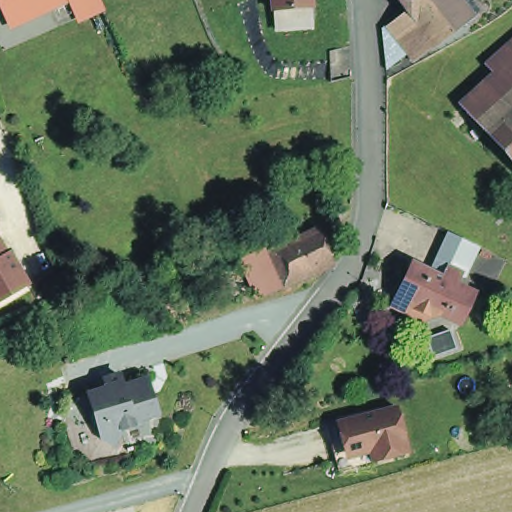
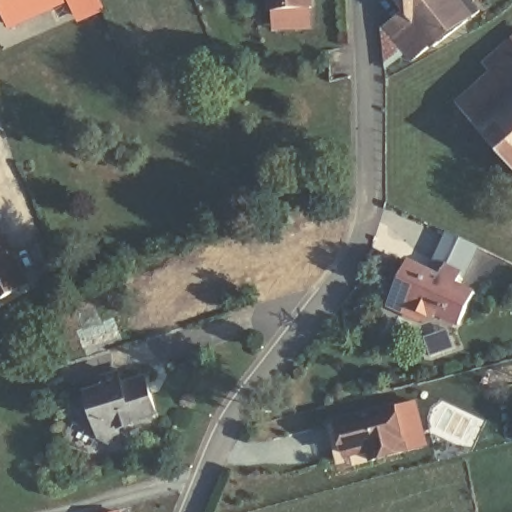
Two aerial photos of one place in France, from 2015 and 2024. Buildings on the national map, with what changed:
unchanged [(12,24),(0,0),(63,0),(12,24)]
unchanged [(102,7),(80,17),(72,0),(98,0),(102,7)]
unchanged [(269,9),(269,0),(313,0),(313,6),(269,9)]
unchanged [(382,74),(380,35),(387,29),(390,31),(409,16),(395,0),(469,0),(478,10),(467,21),(435,50),(402,64),(390,67),(382,74)]
unchanged [(463,110),(502,74),(495,66),(512,51),(512,163),(463,110)]
unchanged [(0,301),(0,230),(32,282),(0,301)]
unchanged [(272,251),(318,230),(332,262),(285,282),(272,251)]
unchanged [(405,281),(413,262),(433,271),(437,261),(452,233),(475,244),(461,272),(455,282),(474,292),(458,323),(440,315),(422,321),(417,303),(400,293),(405,281)]
unchanged [(260,256),(272,251),(285,282),(257,295),(241,259),(258,251),(260,256)]
unchanged [(447,330),(455,349),(431,357),(424,339),(447,330)]
unchanged [(138,423),(140,427),(120,434),(120,437),(113,449),(100,442),(97,430),(90,427),(88,420),(92,414),(87,398),(106,392),(103,383),(118,378),(122,390),(132,387),(146,382),(150,396),(157,417),(138,423)]
unchanged [(374,459),(370,445),(349,451),(342,421),(397,403),(409,448),(374,459)]

